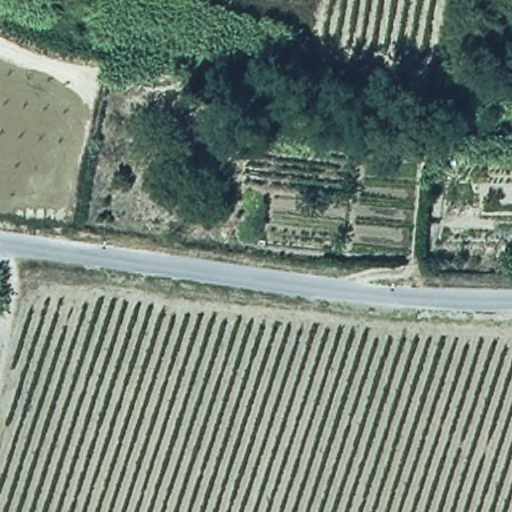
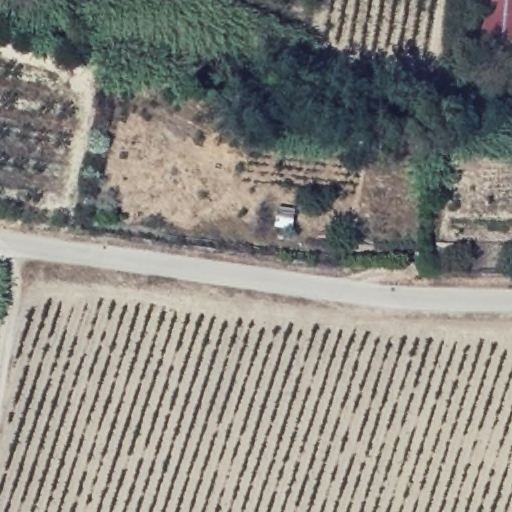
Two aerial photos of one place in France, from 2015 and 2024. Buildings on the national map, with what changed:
new [(483,0),(512,0),(512,45),(479,40),(483,0)]

